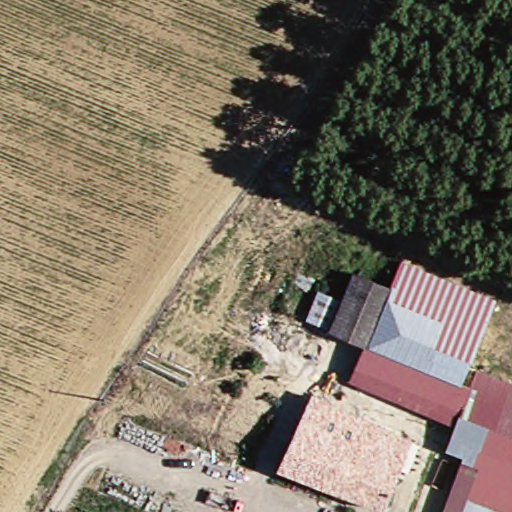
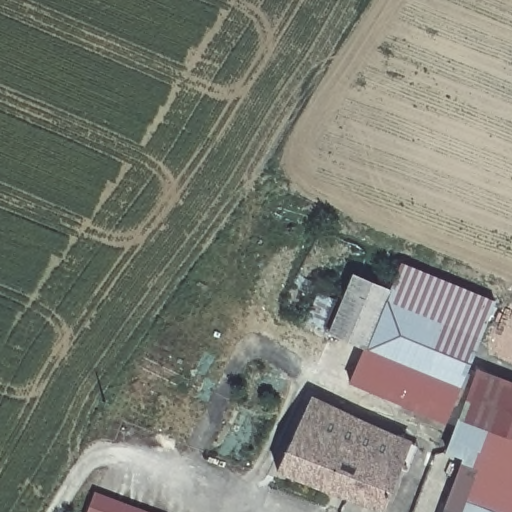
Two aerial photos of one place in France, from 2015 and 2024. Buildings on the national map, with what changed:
unchanged [(444,454),(438,452),(448,428),(345,384),(360,348),(332,336),(321,332),(347,270),(368,279),(383,285),(392,264),(487,304),(452,387),(462,391),(469,374),(475,376),(512,392),(512,512),(435,512),(455,459),(444,454)]
unchanged [(270,470),(303,400),(398,441),(387,469),(372,509),(270,470)]
new [(151,512),(88,512),(95,491),(151,512)]

